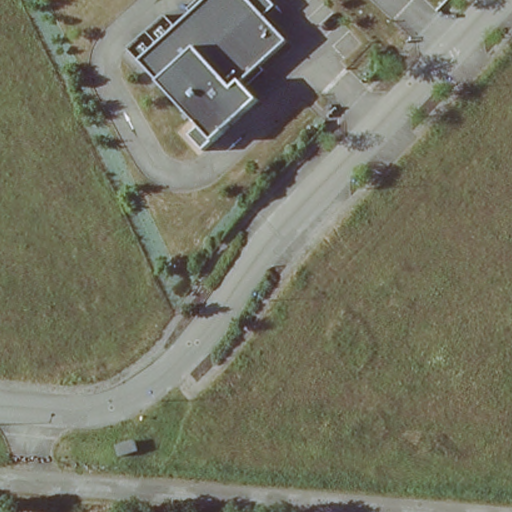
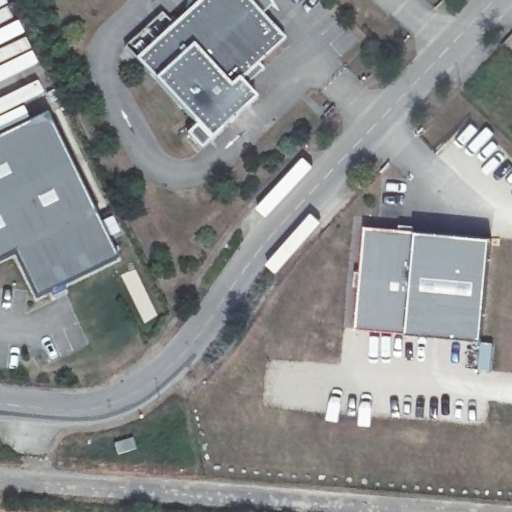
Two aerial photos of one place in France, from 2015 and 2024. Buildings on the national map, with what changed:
unchanged [(263,104),(215,147),(164,86),(143,63),(131,49),(168,18),(179,29),(214,0),(248,0),(287,47),(249,85),(263,104)]
new [(118,258),(36,298),(14,253),(0,260),(0,136),(47,113),(118,258)]
new [(356,328),(364,228),(416,233),(491,239),(482,340),(408,333),(356,328)]

